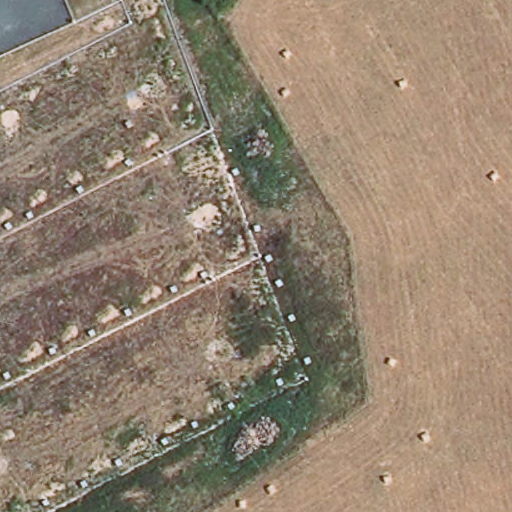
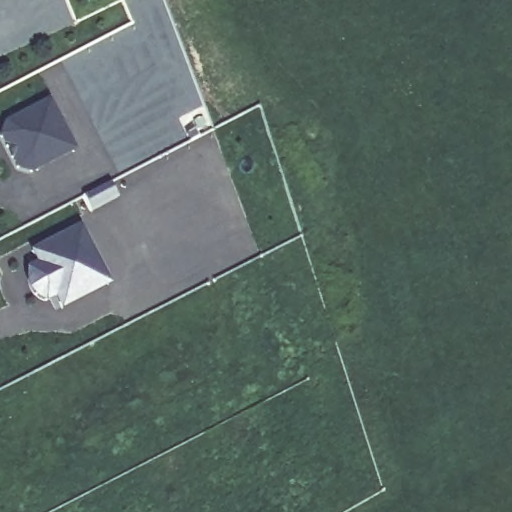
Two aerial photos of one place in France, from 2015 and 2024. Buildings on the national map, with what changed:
new [(9,122),(47,103),(71,153),(33,171),(27,174),(14,170),(0,141),(0,133),(3,124),(9,122)]
new [(35,264),(30,252),(77,230),(104,287),(56,309),(50,296),(40,301),(30,294),(27,288),(25,280),(25,268),(35,264)]

